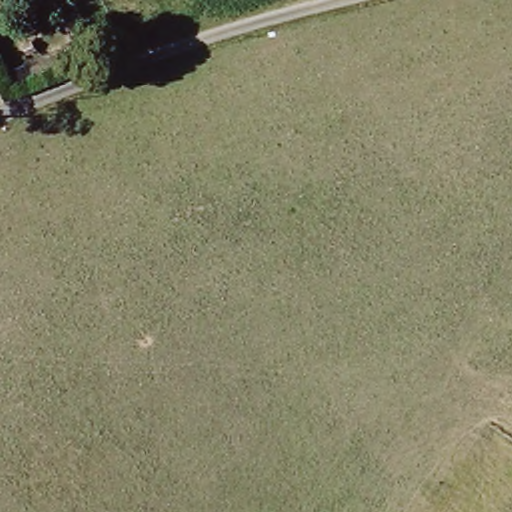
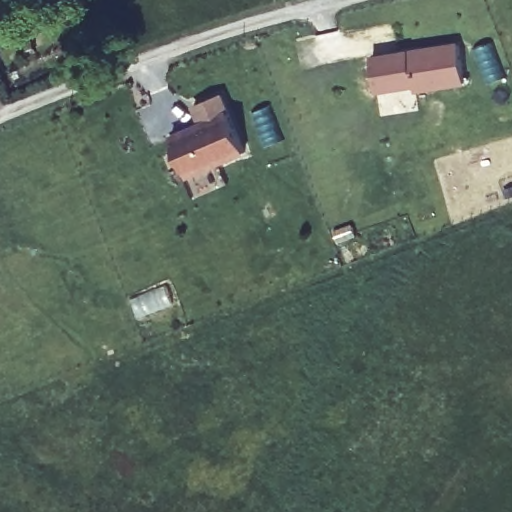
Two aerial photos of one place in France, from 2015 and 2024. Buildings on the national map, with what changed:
new [(458,41),(464,86),(415,94),(415,91),(378,96),(372,55),(458,41)]
new [(247,155),(190,179),(170,134),(200,121),(193,106),(223,94),(247,155)]

